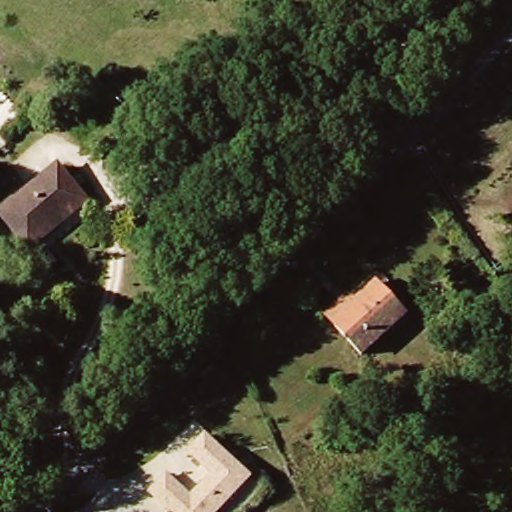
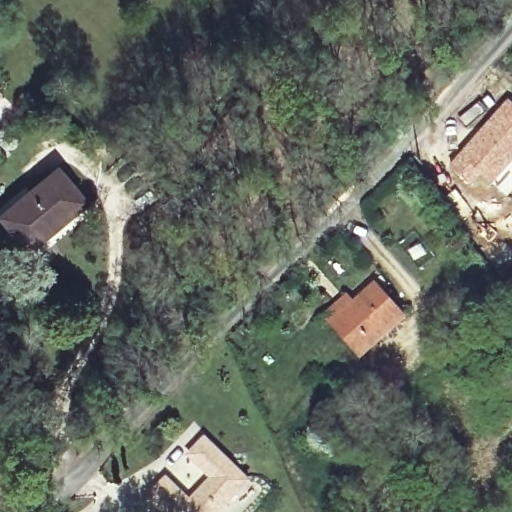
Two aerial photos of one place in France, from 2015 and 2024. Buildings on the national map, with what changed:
new [(512,102),(512,160),(489,185),(481,179),(472,189),(448,166),(508,97),(512,102)]
unchanged [(27,249),(0,216),(0,214),(33,187),(55,168),(84,203),(86,206),(64,223),(29,252),(27,249)]
unchanged [(408,315),(365,354),(337,325),(329,316),(351,296),(358,304),(380,284),(408,315)]
unchanged [(164,480),(188,503),(211,482),(188,457),(204,441),(248,486),(220,512),(163,512),(148,497),(164,480)]

